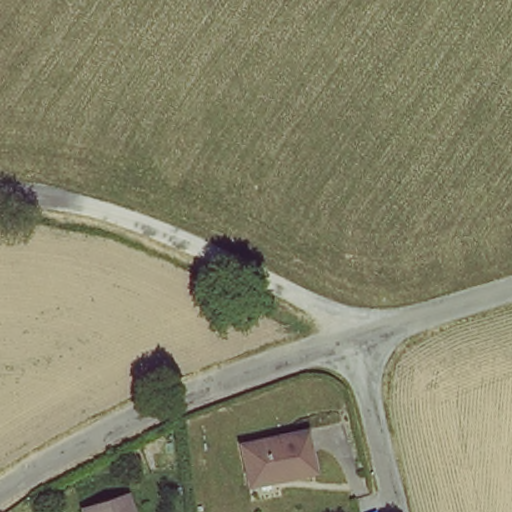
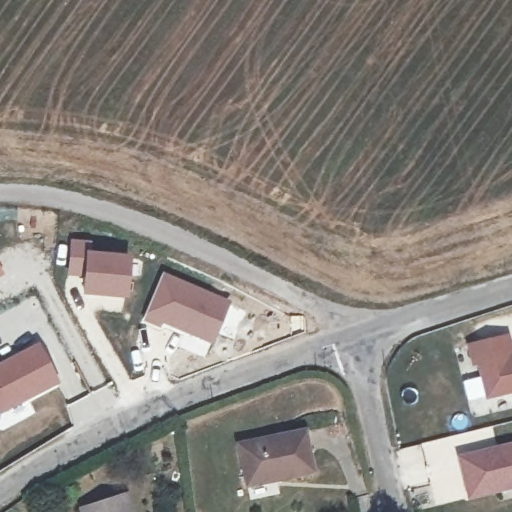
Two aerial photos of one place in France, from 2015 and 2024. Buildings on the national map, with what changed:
new [(84,277),(68,275),(71,240),(91,242),(91,253),(130,255),(127,298),(83,294),(84,277)]
new [(0,276),(0,271),(2,275),(0,276)]
new [(159,328),(143,320),(163,273),(229,302),(213,344),(162,322),(159,328)]
new [(510,333),(512,341),(512,392),(484,398),(476,365),(471,366),(467,343),(510,333)]
new [(0,363),(39,342),(58,383),(0,413),(0,363)]
unchanged [(305,427),(313,470),(277,476),(276,470),(248,476),(239,441),(305,427)]
new [(457,455),(512,441),(512,488),(468,499),(457,455)]
unchanged [(128,495),(132,512),(82,512),(81,508),(128,495)]

